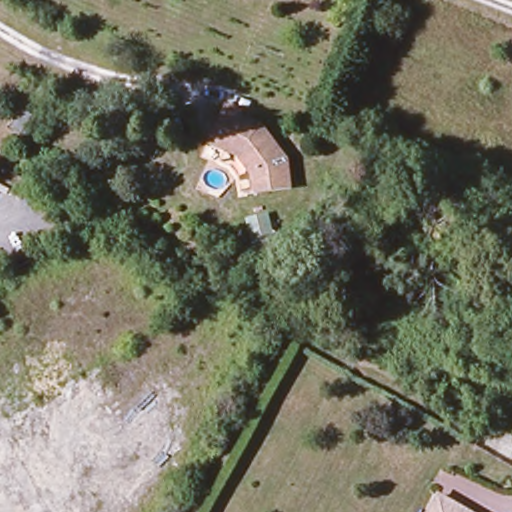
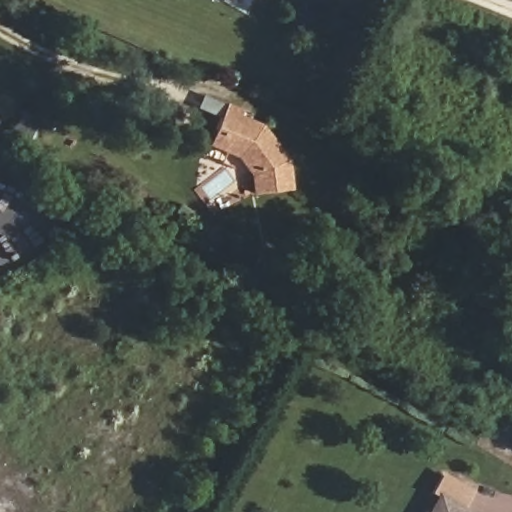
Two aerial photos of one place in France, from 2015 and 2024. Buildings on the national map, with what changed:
unchanged [(242,108),(239,114),(259,124),(290,161),(289,192),(253,193),(253,173),(237,153),(225,148),(208,140),(214,126),(225,100),(242,108)]
unchanged [(465,512),(426,512),(436,495),(465,512)]

